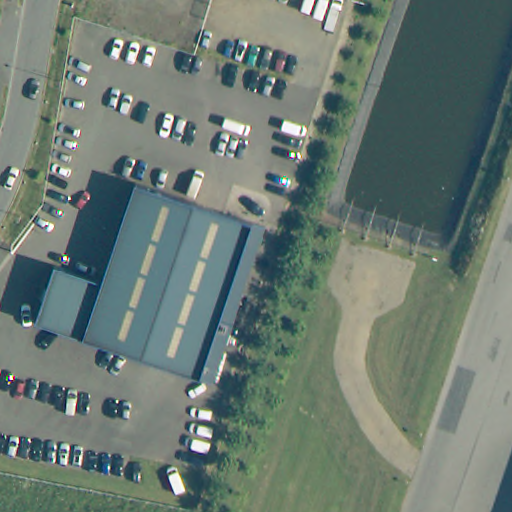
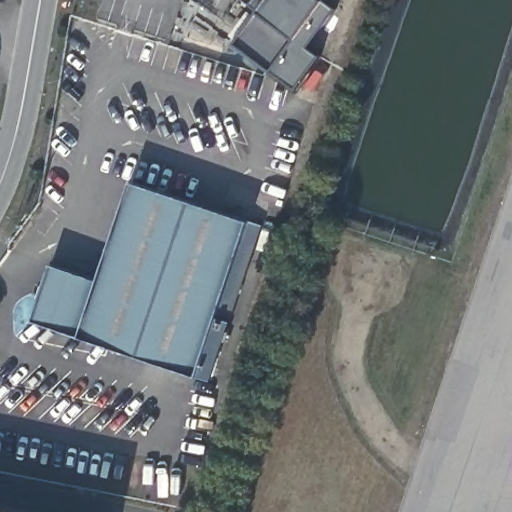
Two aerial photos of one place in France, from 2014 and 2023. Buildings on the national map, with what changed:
new [(337,8),(308,46),(320,55),(295,88),(235,44),(259,10),(267,0),(324,0),(337,8)]
unchanged [(28,320),(46,263),(94,278),(126,179),(245,218),(194,374),(28,320)]
unchanged [(257,222),(206,378),(194,374),(245,218),(257,222)]
unchanged [(28,512),(0,512),(0,506),(28,512)]

